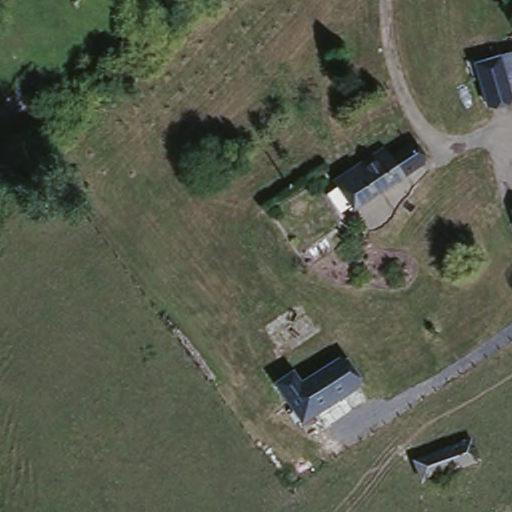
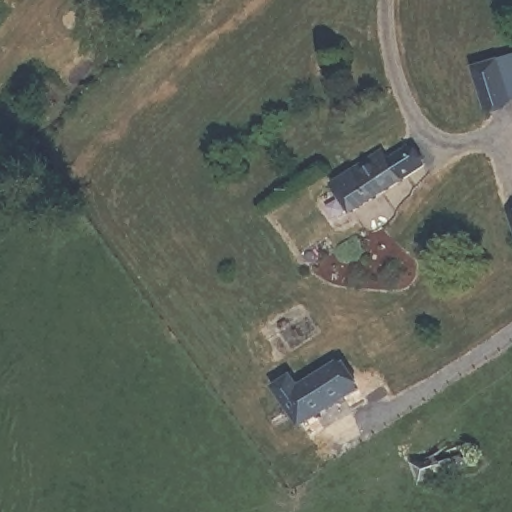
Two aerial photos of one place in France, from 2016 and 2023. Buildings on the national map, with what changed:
unchanged [(512,53),(512,110),(487,115),(475,64),(512,53)]
unchanged [(364,218),(343,189),(398,142),(408,155),(423,144),(434,159),(364,218)]
unchanged [(302,381),(311,393),(347,368),(363,393),(306,433),(280,398),(302,381)]
unchanged [(466,434),(478,456),(426,484),(414,460),(466,434)]

